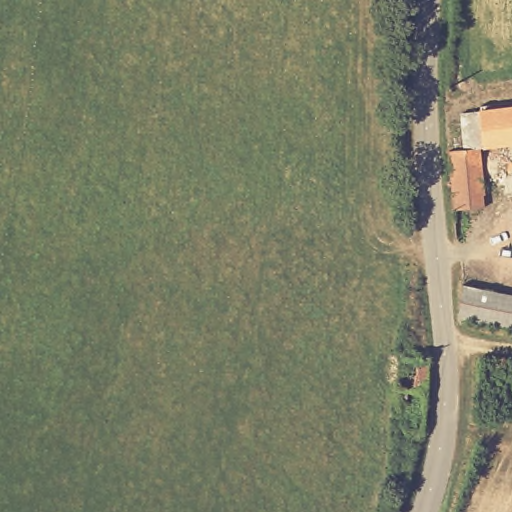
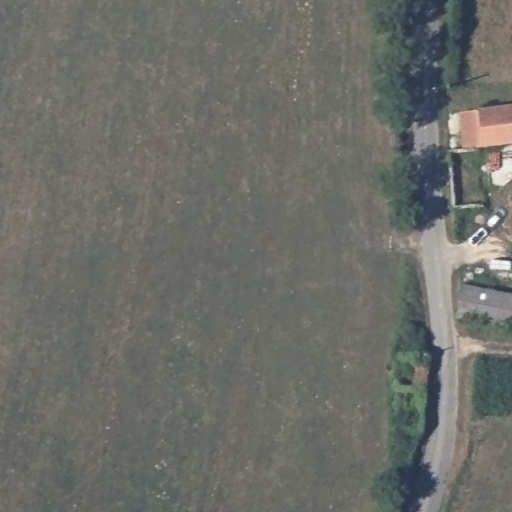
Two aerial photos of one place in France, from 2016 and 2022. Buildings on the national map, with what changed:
unchanged [(447,151),(455,150),(454,138),(463,137),(462,114),(481,109),(512,106),(512,144),(478,147),(482,205),(452,208),(447,151)]
unchanged [(461,323),(466,290),(512,300),(512,333),(461,323)]

